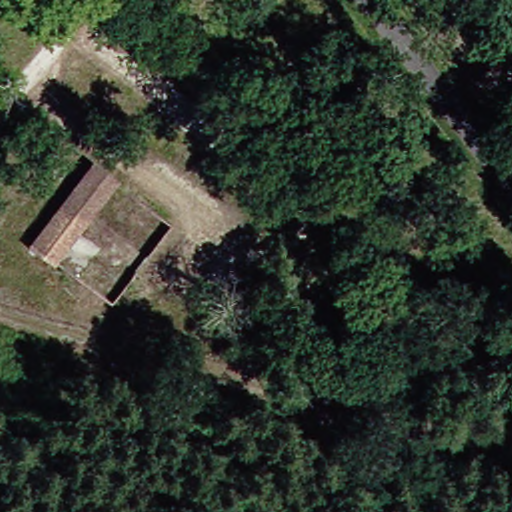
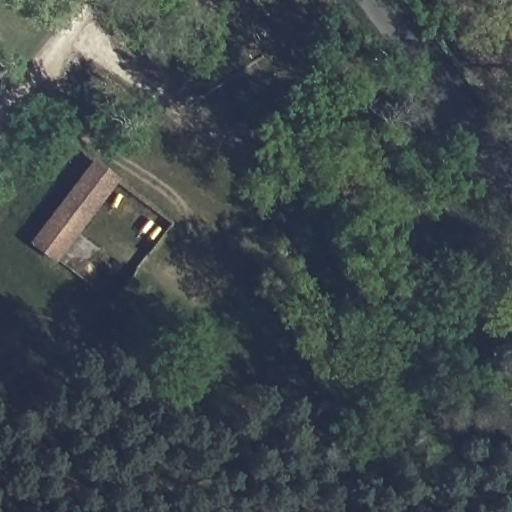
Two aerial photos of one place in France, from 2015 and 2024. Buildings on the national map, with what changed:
unchanged [(65,256),(37,236),(93,165),(123,186),(65,256)]

